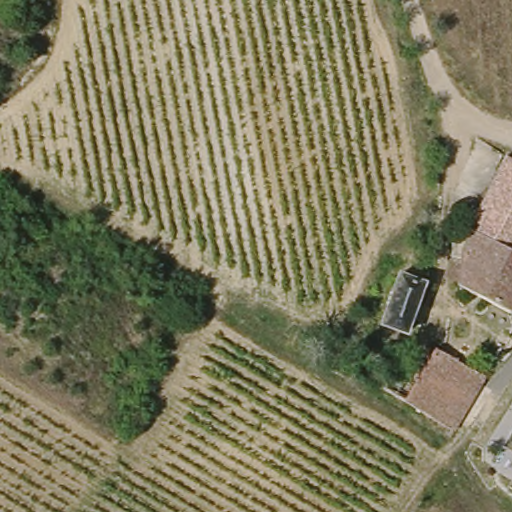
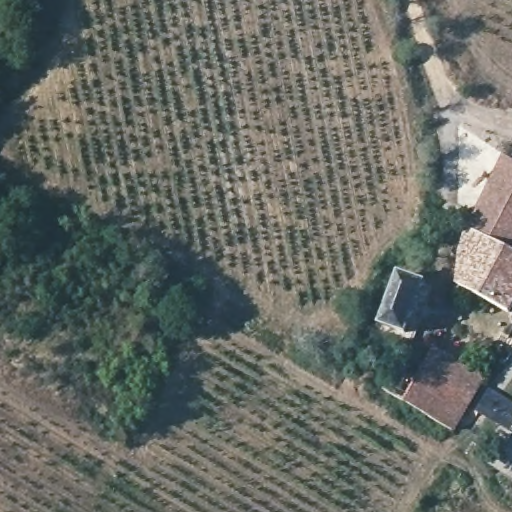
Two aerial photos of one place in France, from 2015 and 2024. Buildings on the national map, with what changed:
unchanged [(504,158),(512,163),(512,313),(510,317),(460,286),(469,243),(504,158)]
unchanged [(401,329),(377,322),(387,273),(411,280),(401,329)]
unchanged [(460,429),(415,402),(392,389),(411,356),(431,367),(442,347),(487,372),(460,429)]

